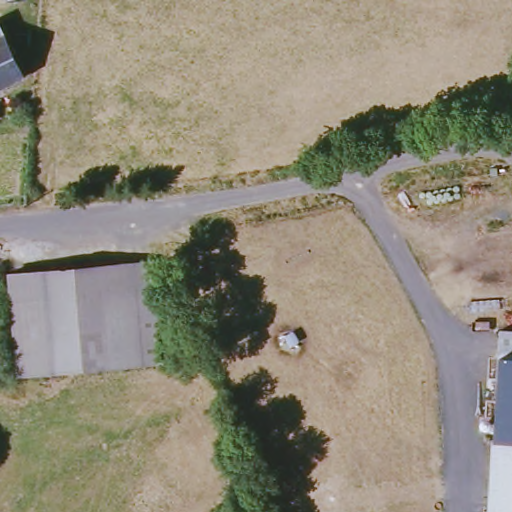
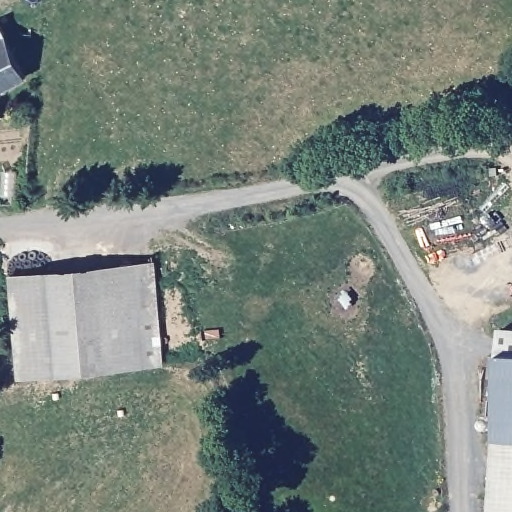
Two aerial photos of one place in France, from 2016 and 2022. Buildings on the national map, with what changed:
unchanged [(25,75),(0,88),(0,26),(25,75)]
unchanged [(153,262),(161,362),(17,375),(8,274),(153,262)]
unchanged [(512,512),(487,512),(490,442),(495,354),(497,327),(512,328),(512,512)]

